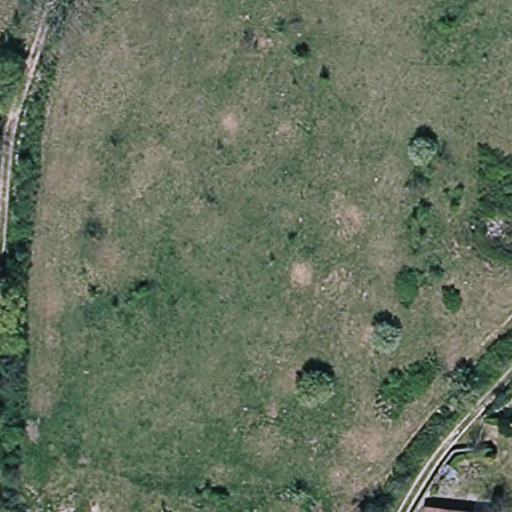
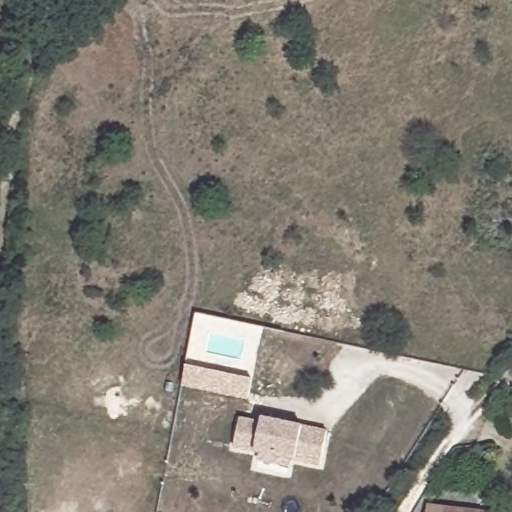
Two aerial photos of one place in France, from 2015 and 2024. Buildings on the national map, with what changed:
new [(183,387),(188,365),(254,379),(249,401),(183,387)]
new [(240,445),(247,417),(268,422),(269,417),(334,432),(326,466),(296,459),(294,466),(264,459),(266,452),(240,445)]
unchanged [(422,512),(422,504),(490,508),(490,512),(422,512)]

